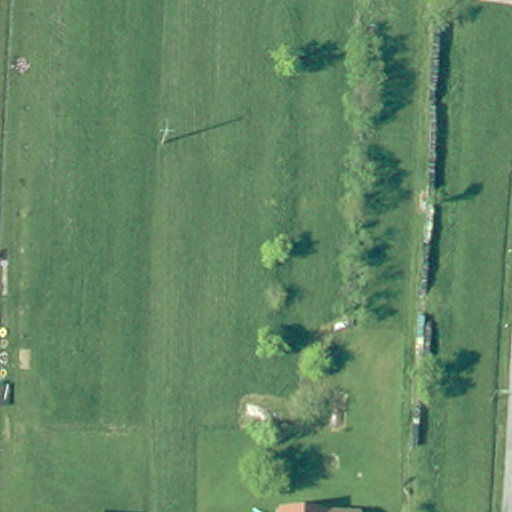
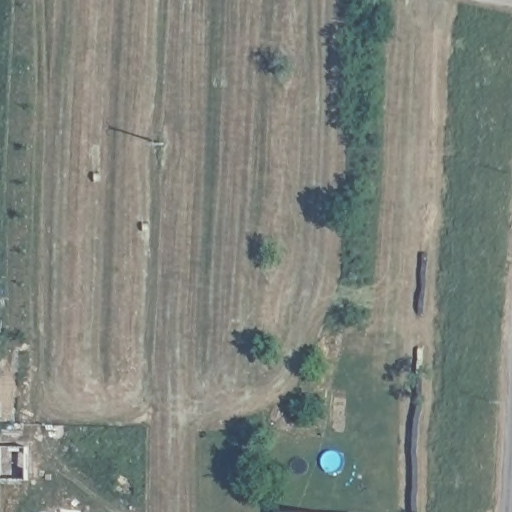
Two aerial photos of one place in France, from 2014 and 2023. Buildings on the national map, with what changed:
unchanged [(360,512),(274,512),(275,508),(360,512)]

